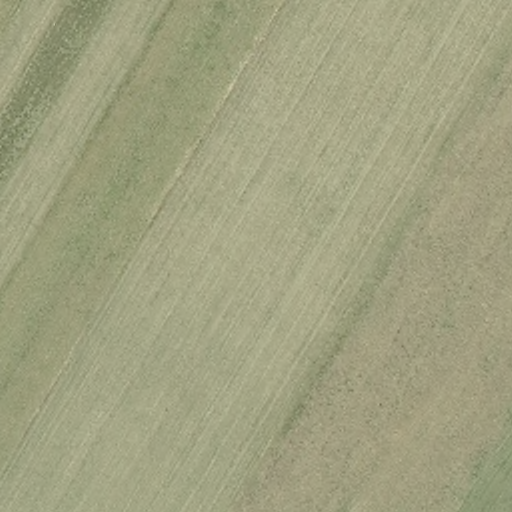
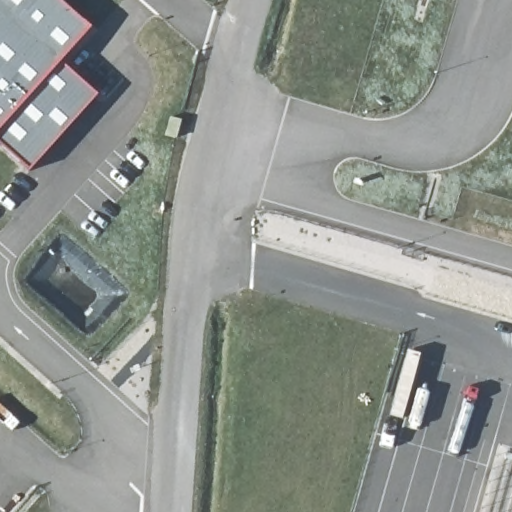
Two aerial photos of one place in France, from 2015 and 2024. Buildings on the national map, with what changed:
new [(97,91),(31,168),(0,143),(0,0),(60,0),(88,25),(59,58),(97,91)]

